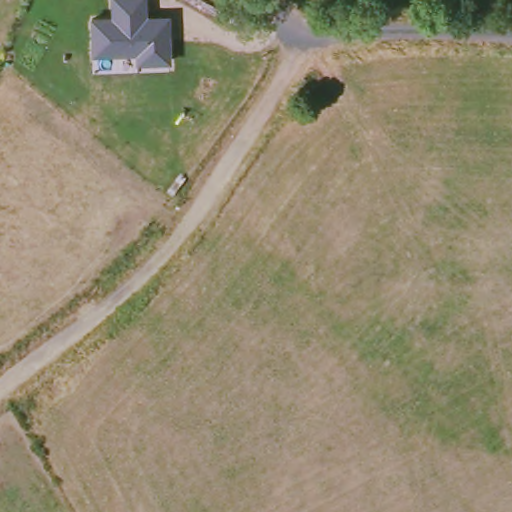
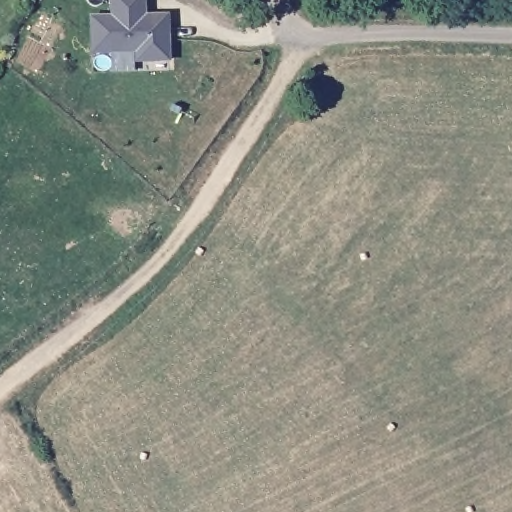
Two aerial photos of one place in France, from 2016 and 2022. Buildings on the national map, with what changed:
unchanged [(113,17),(112,0),(148,0),(149,16),(172,16),(172,65),(137,66),(136,55),(92,55),(91,18),(113,17)]

